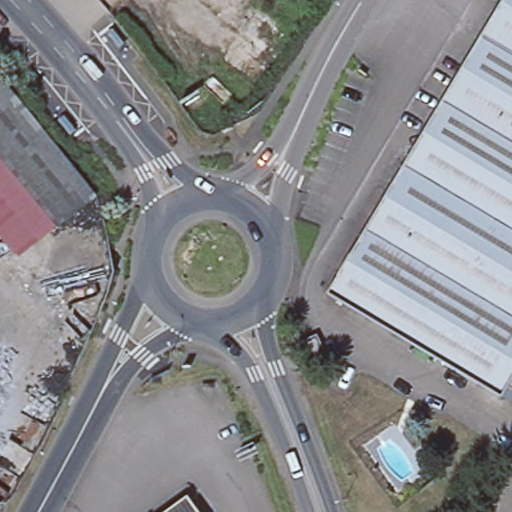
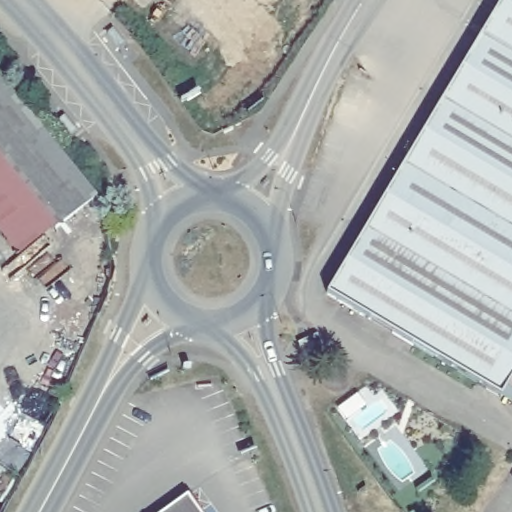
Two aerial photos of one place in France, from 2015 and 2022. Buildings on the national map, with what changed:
unchanged [(502,388),(500,390),(331,290),(503,0),(512,0),(512,386),(509,392),(502,388)]
unchanged [(15,259),(0,240),(0,72),(99,196),(15,259)]
unchanged [(318,340),(329,364),(319,367),(310,371),(299,346),(299,345),(318,340)]
unchanged [(187,495),(200,512),(163,512),(187,495)]

